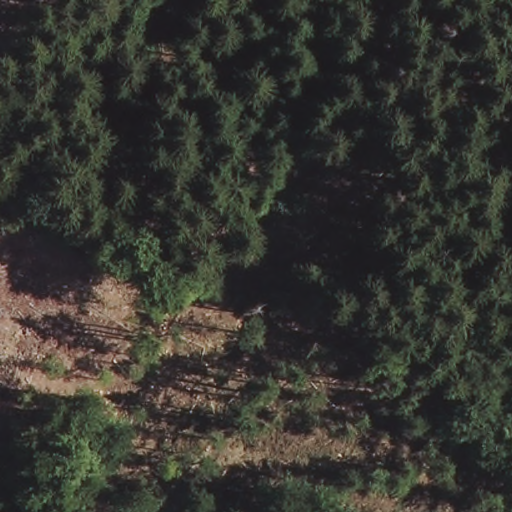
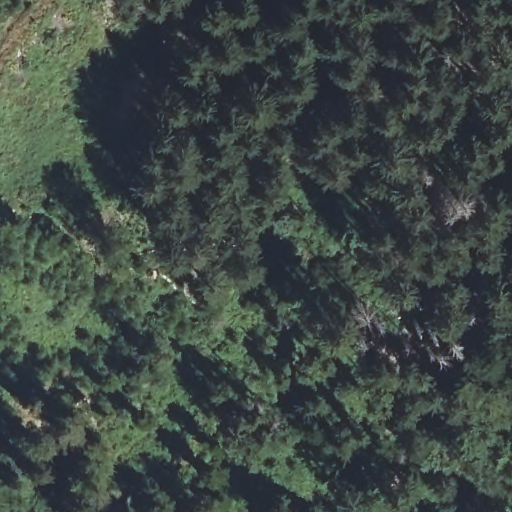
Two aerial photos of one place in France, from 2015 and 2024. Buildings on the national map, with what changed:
[]

